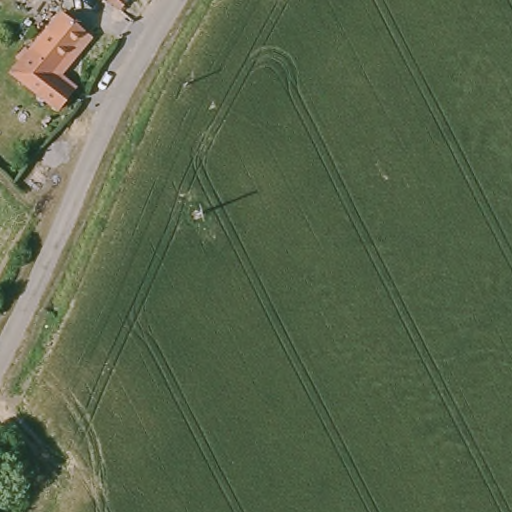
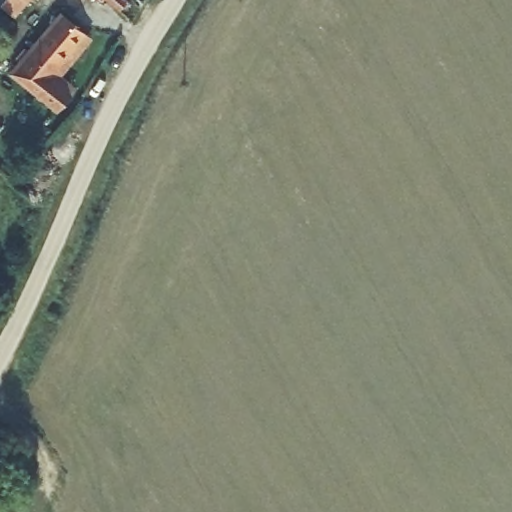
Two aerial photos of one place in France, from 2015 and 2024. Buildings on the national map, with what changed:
unchanged [(61,16),(84,37),(49,77),(70,96),(54,113),(10,74),(61,16)]

